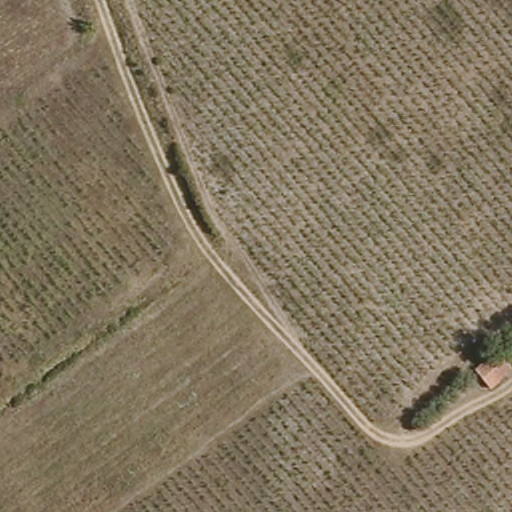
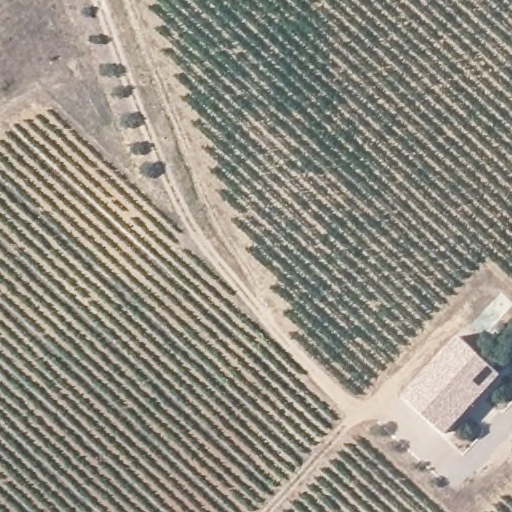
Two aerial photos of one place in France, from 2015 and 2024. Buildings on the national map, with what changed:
new [(402,397),(458,335),(501,374),(447,436),(402,397)]
demolished [(474,368),(491,355),(505,372),(488,387),(478,378),(474,368)]

